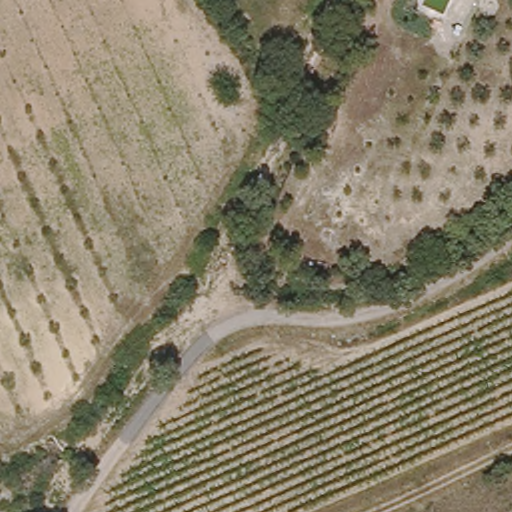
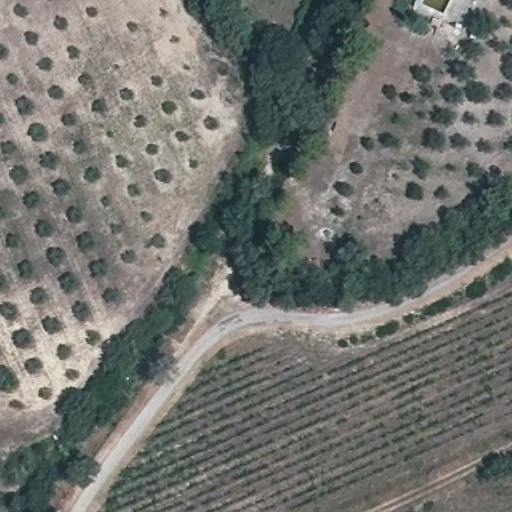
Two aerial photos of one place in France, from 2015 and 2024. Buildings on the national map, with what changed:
unchanged [(309,144),(298,170),(284,164),(294,138),(309,144)]

